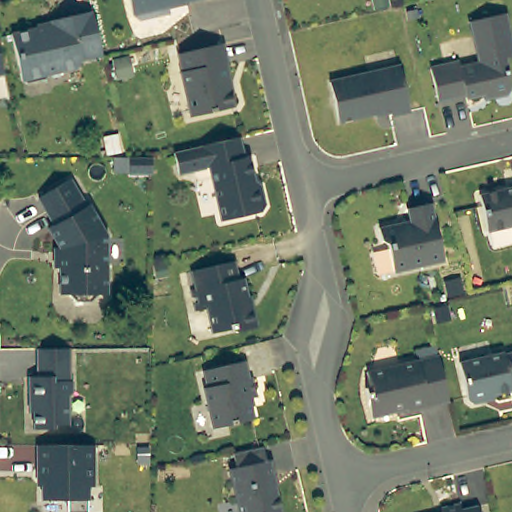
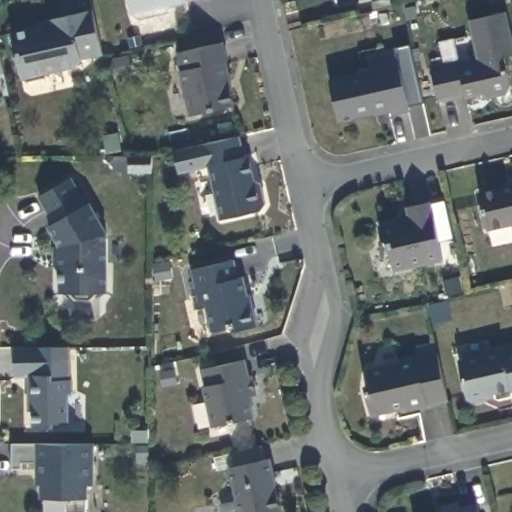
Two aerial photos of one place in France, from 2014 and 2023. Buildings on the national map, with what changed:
unchanged [(128,0),(181,0),(157,5),(154,11),(138,15),(130,11),(128,0)]
unchanged [(94,49),(72,55),(68,63),(41,68),(37,75),(19,78),(12,75),(2,30),(42,19),(42,16),(84,6),(94,49)]
unchanged [(455,55),(456,61),(475,56),(465,16),(500,8),(510,50),(499,52),(507,80),(503,88),(493,91),(485,87),(463,92),(462,89),(435,95),(427,61),(455,55)]
unchanged [(221,39),(225,58),(224,58),(228,75),(225,76),(232,102),(189,111),(178,68),(180,67),(175,49),(221,39)]
unchanged [(396,60),(406,105),(389,109),(387,104),(336,116),(326,77),(396,60)]
unchanged [(237,153),(241,151),(247,175),(253,178),(258,197),(255,205),(215,215),(202,162),(173,170),(168,146),(231,132),(237,153)]
unchanged [(155,171),(154,171),(153,171),(131,171),(131,154),(155,154),(155,171)]
unchanged [(50,225),(56,222),(40,195),(73,177),(88,203),(91,202),(108,232),(108,291),(100,291),(93,299),(77,299),(70,291),(61,291),(61,265),(56,265),(56,245),(61,245),(50,225)]
unchanged [(477,189),(512,181),(512,219),(485,225),(477,189)]
unchanged [(392,266),(386,237),(379,234),(376,222),(407,215),(405,202),(428,197),(441,255),(392,266)]
unchanged [(232,260),(236,278),(241,277),(245,295),(248,294),(255,327),(236,330),(230,327),(211,332),(205,307),(194,310),(190,289),(195,287),(190,270),(232,260)]
unchanged [(71,394),(71,422),(56,422),(56,426),(36,426),(36,401),(32,401),(31,373),(40,373),(40,346),(72,345),(72,346),(72,378),(74,378),(75,390),(71,394)]
unchanged [(509,385),(507,384),(483,389),(480,394),(471,396),(465,393),(456,355),(500,346),(500,348),(512,346),(512,385),(509,385)]
unchanged [(206,380),(202,363),(243,354),(247,371),(250,370),(254,390),(247,391),(252,412),(212,421),(202,382),(206,380)]
unchanged [(400,410),(399,407),(365,414),(358,387),(363,385),(360,370),(431,354),(442,400),(400,410)]
unchanged [(47,437),(90,437),(90,479),(84,479),(84,507),(63,507),(63,492),(38,492),(38,468),(33,468),(33,437),(47,437)]
unchanged [(269,459),(273,477),(271,478),(279,510),(273,512),(238,512),(228,467),(235,465),(232,451),(261,445),(264,459),(269,459)]
unchanged [(439,501),(456,497),(457,503),(474,499),(478,512),(428,512),(441,509),(439,501)]

